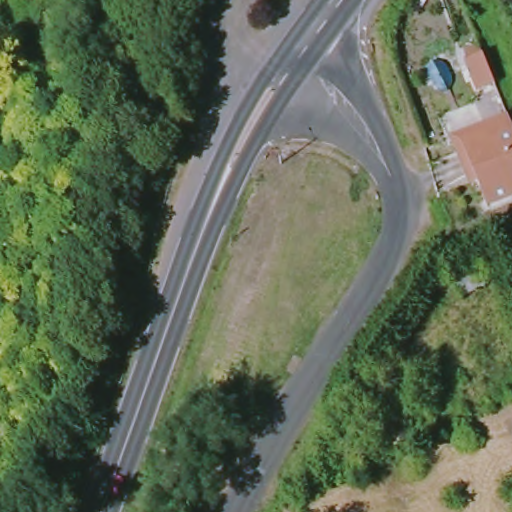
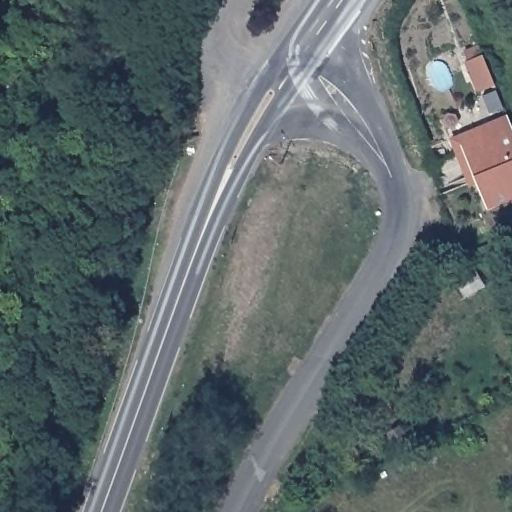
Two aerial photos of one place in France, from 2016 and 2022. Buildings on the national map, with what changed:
unchanged [(450,137),(508,114),(512,125),(512,127),(465,145),(475,176),(466,179),(450,137)]
unchanged [(512,127),(512,197),(487,206),(475,176),(465,145),(512,127)]
unchanged [(391,429),(404,422),(412,438),(401,444),(394,447),(385,432),(391,429)]

